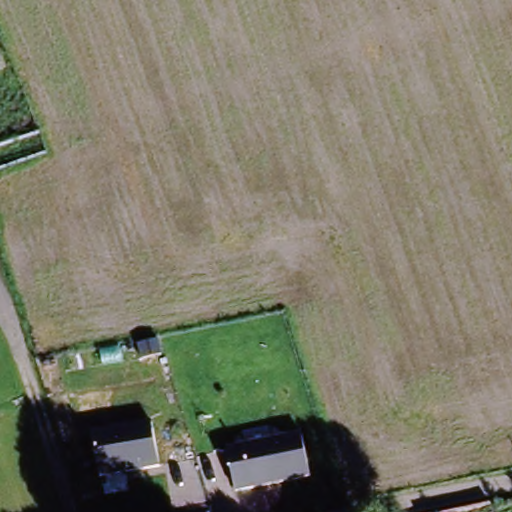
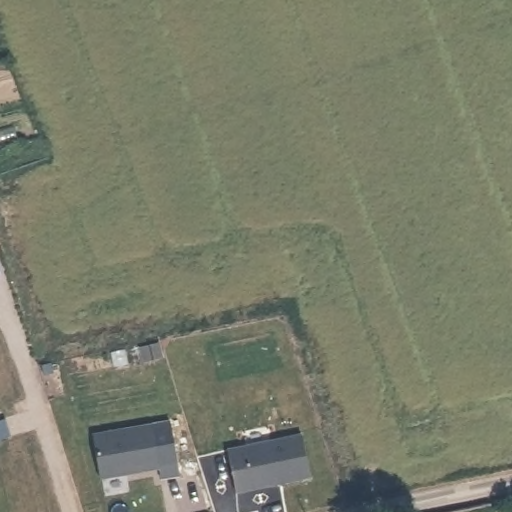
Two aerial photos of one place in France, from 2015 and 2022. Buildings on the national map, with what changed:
unchanged [(92,436),(152,425),(160,470),(100,480),(92,436)]
unchanged [(309,480),(235,493),(227,450),(302,435),(309,480)]

